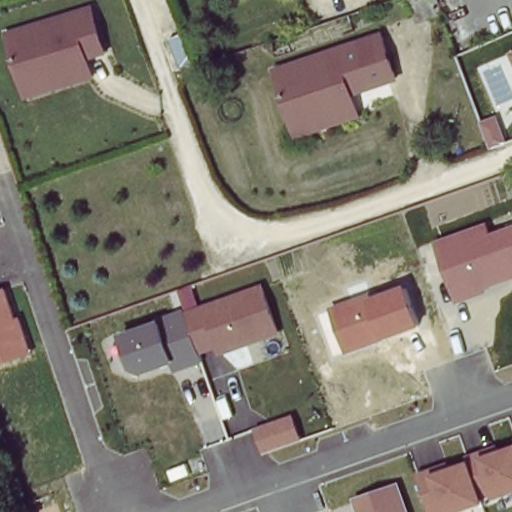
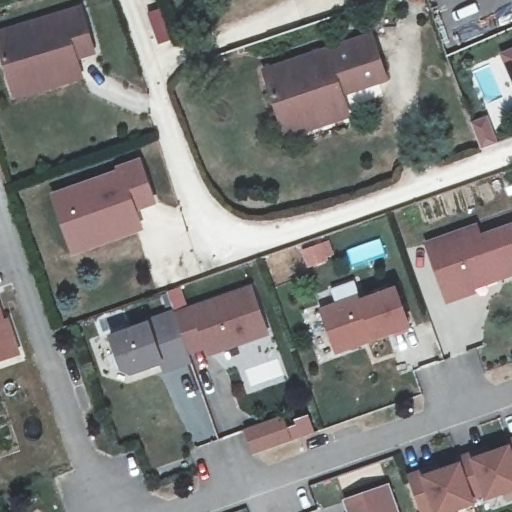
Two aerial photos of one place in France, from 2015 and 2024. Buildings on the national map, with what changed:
unchanged [(0,35),(76,11),(90,55),(71,60),(44,69),(47,78),(8,90),(0,62),(0,35)]
unchanged [(286,132),(283,122),(267,67),(369,37),(382,80),(342,92),(348,114),(286,132)]
unchanged [(512,51),(512,76),(503,55),(512,51)]
unchanged [(12,100),(8,90),(47,78),(44,69),(71,60),(77,80),(12,100)]
new [(115,168),(114,165),(140,156),(157,205),(138,211),(145,230),(70,256),(48,192),(115,168)]
unchanged [(478,224),(482,235),(512,224),(512,276),(477,290),(480,293),(448,305),(426,242),(478,224)]
unchanged [(393,284),(409,328),(374,340),(375,343),(335,356),(321,310),(393,284)]
unchanged [(177,312),(170,295),(185,289),(192,308),(255,286),(272,337),(210,358),(207,351),(194,355),(197,363),(167,373),(163,366),(132,377),(117,372),(108,337),(177,312)]
unchanged [(10,320),(22,356),(0,363),(0,303),(7,321),(10,320)]
new [(281,418),(290,442),(252,455),(244,431),(281,418)]
unchanged [(450,512),(420,512),(410,477),(512,441),(512,491),(450,512)]
unchanged [(391,485),(401,512),(348,512),(343,500),(391,485)]

